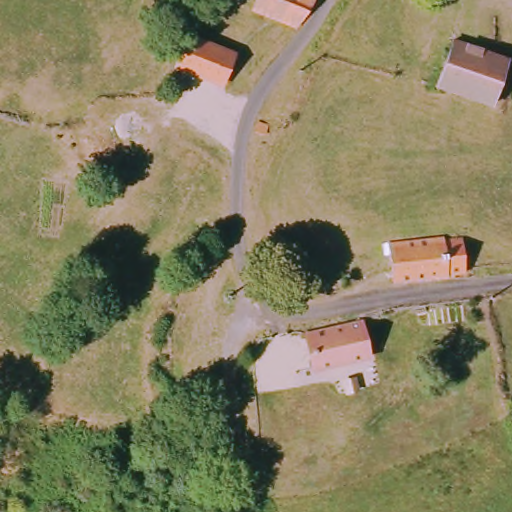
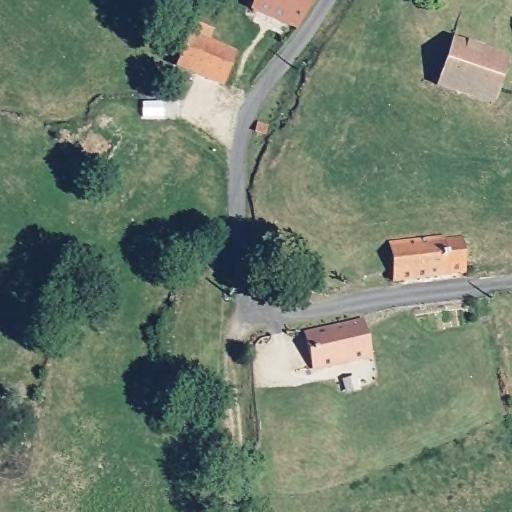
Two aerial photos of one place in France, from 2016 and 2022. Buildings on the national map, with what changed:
unchanged [(302,36),(253,15),(258,0),(320,0),(302,36)]
unchanged [(187,42),(191,35),(231,54),(220,80),(179,62),(187,42)]
unchanged [(450,42),(501,61),(512,65),(512,78),(506,94),(498,106),(440,85),(450,42)]
unchanged [(400,243),(468,239),(472,282),(402,289),(400,243)]
unchanged [(375,359),(313,377),(302,335),(368,319),(375,359)]

